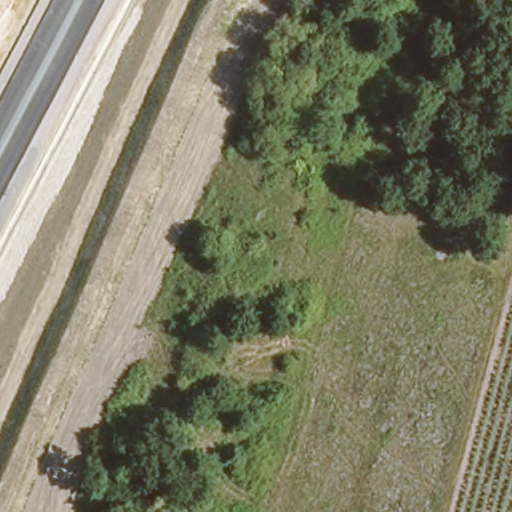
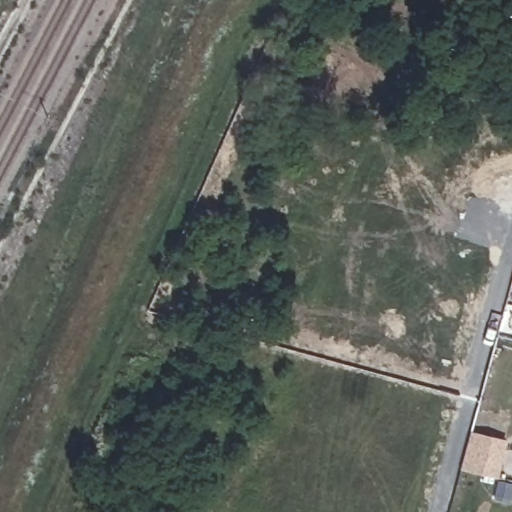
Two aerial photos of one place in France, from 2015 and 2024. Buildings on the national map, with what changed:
new [(471,431),(508,441),(498,478),(461,467),(471,431)]

